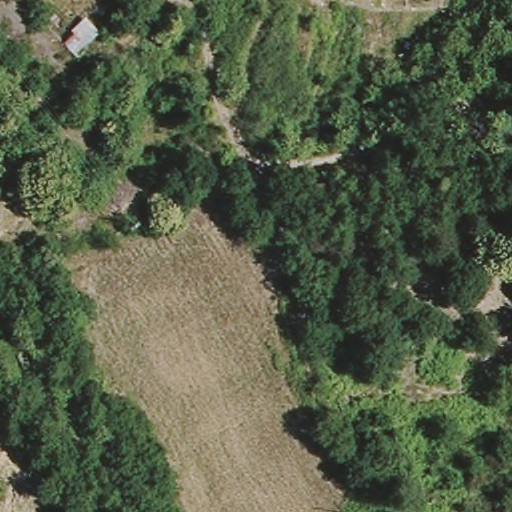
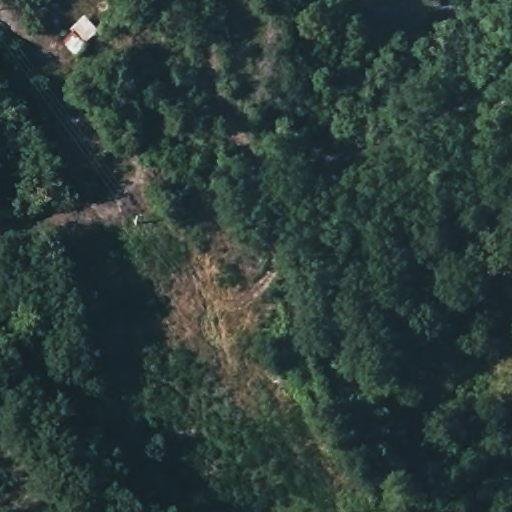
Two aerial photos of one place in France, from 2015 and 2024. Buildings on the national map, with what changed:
unchanged [(90,47),(77,62),(60,46),(72,32),(90,47)]

